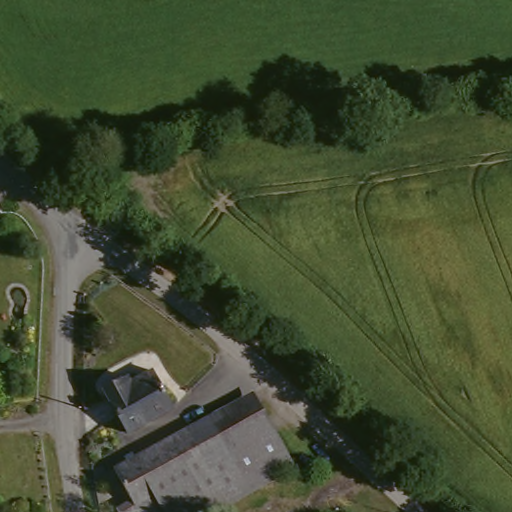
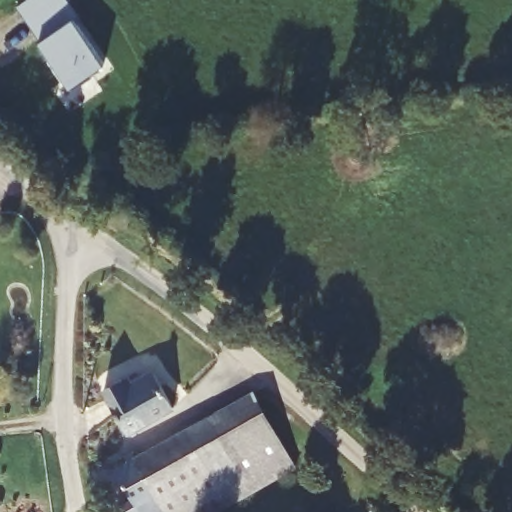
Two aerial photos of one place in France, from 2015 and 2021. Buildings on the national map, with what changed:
new [(39,41),(17,6),(26,0),(70,0),(81,15),(76,17),(106,66),(71,89),(39,41)]
unchanged [(167,413),(120,432),(101,387),(122,378),(128,387),(154,375),(167,413)]
unchanged [(257,398),(266,418),(219,439),(210,419),(257,398)]
unchanged [(268,490),(215,510),(184,431),(210,419),(219,439),(266,418),(291,476),(268,490)]
unchanged [(129,502),(114,463),(184,431),(215,510),(212,512),(123,512),(121,505),(129,502)]

